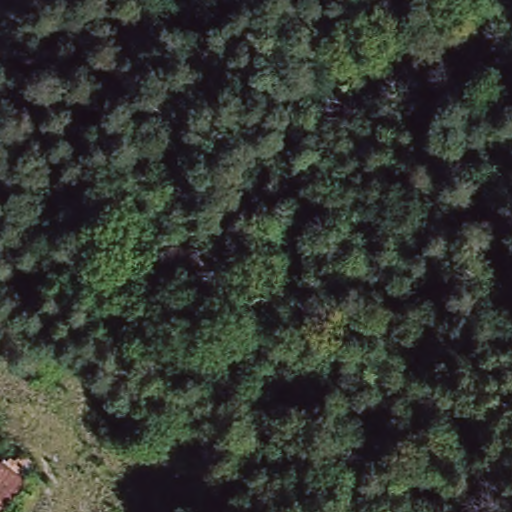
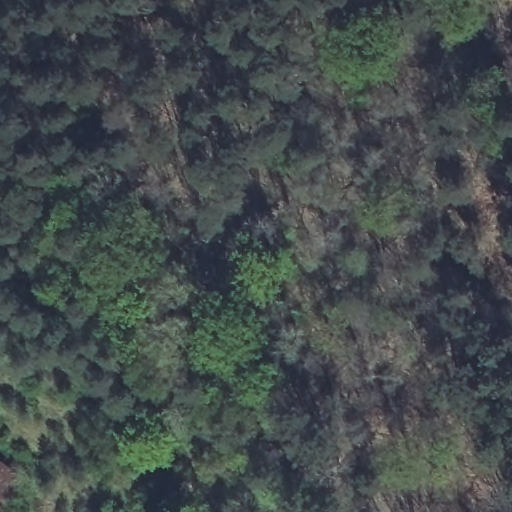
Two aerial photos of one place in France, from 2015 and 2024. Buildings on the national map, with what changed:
unchanged [(20,482),(0,512),(0,469),(20,482)]

